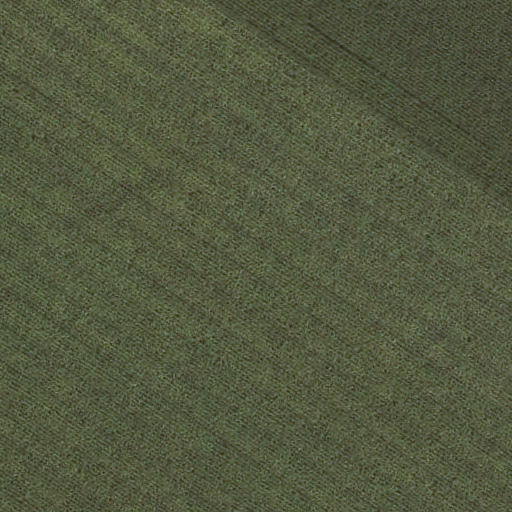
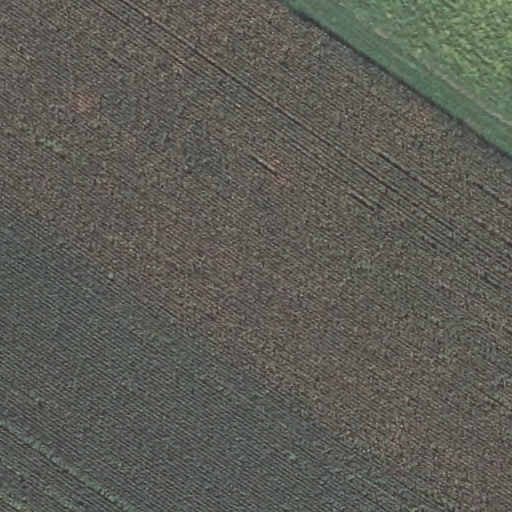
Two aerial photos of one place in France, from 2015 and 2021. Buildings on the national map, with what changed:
[]

